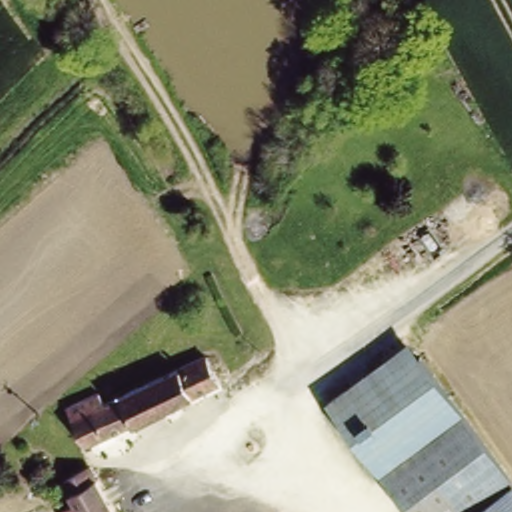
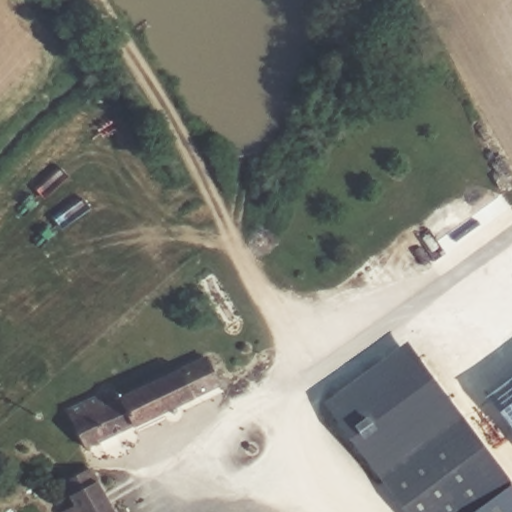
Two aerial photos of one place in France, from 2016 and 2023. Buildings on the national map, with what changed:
unchanged [(512,482),(469,512),(406,512),(324,399),(408,336),(512,472),(512,482)]
unchanged [(111,391),(116,400),(183,365),(178,356),(211,339),(228,374),(86,448),(68,414),(111,391)]
new [(512,431),(486,397),(512,377),(512,431)]
unchanged [(58,502),(51,490),(92,468),(115,512),(46,512),(44,509),(58,502)]
unchanged [(512,512),(469,512),(512,482),(512,512)]

